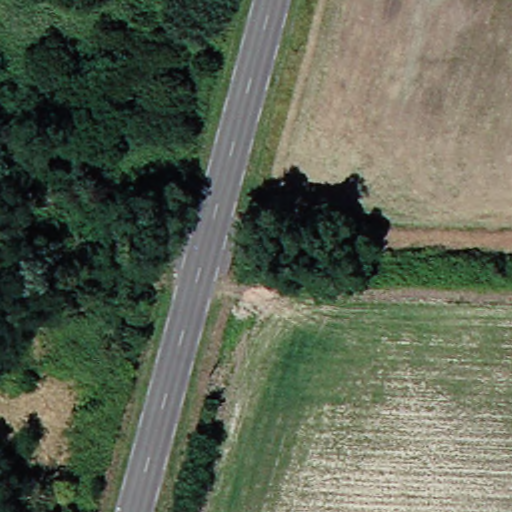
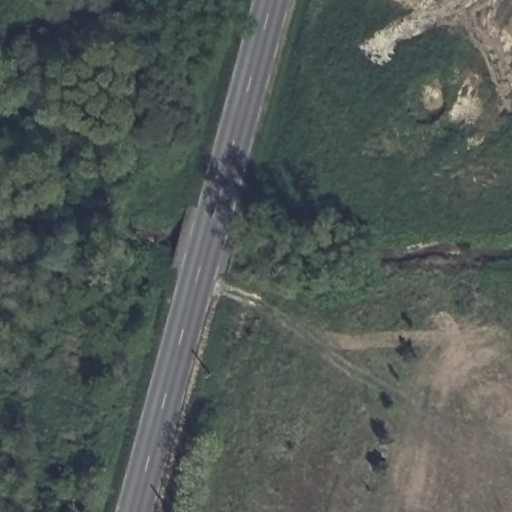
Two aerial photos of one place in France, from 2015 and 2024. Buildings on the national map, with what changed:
[]

